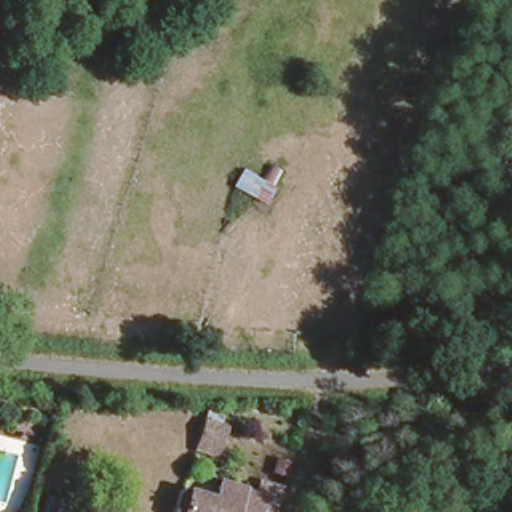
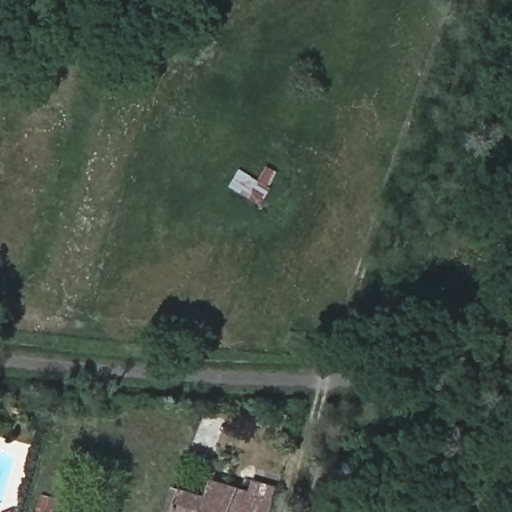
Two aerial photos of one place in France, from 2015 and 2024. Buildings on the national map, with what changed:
unchanged [(252,198),(227,184),(240,164),(262,179),(252,198)]
unchanged [(223,418),(212,450),(189,442),(200,410),(223,418)]
unchanged [(263,448),(272,451),(268,465),(260,463),(263,448)]
unchanged [(171,492),(206,502),(212,485),(268,504),(266,512),(165,512),(171,492)]
unchanged [(29,508),(42,512),(28,512),(29,508)]

